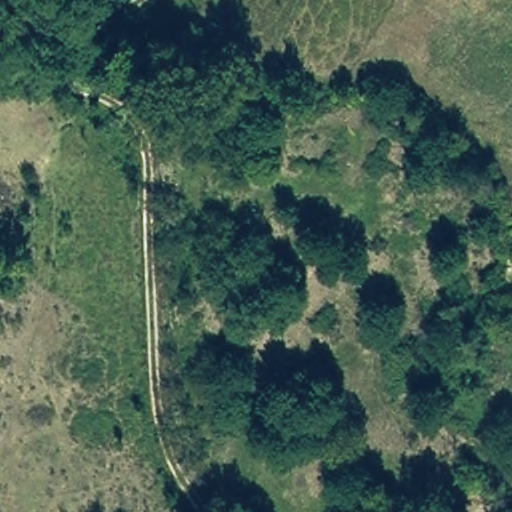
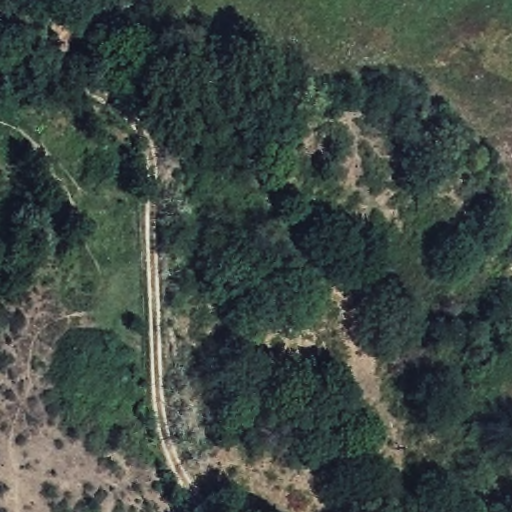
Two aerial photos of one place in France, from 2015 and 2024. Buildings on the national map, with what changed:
[]

